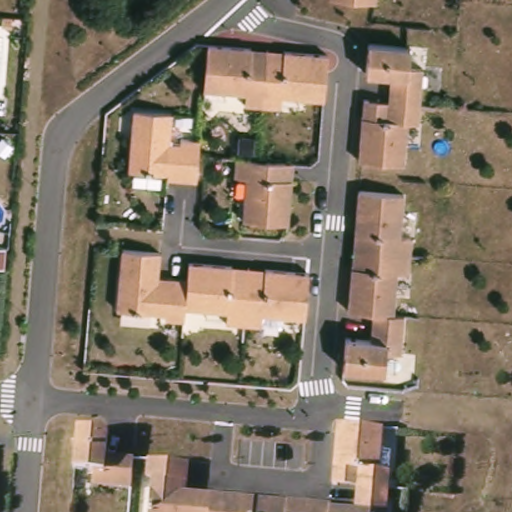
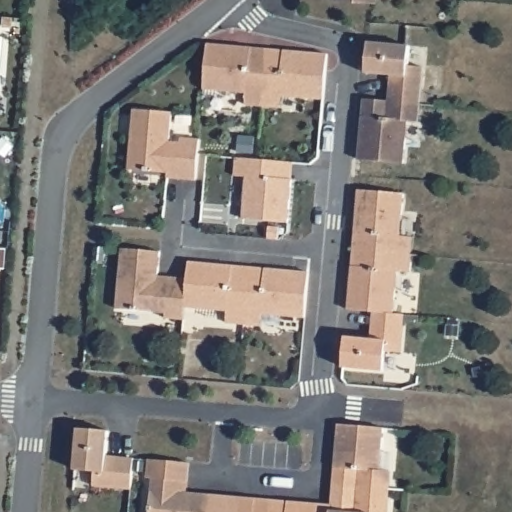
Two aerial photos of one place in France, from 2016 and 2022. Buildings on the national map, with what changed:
unchanged [(381,7),(336,4),(336,0),(381,0),(381,7)]
unchanged [(368,105),(393,107),(396,81),(371,79),(373,49),(415,52),(412,71),(428,73),(426,110),(426,111),(424,128),(412,127),(409,170),(363,165),(367,122),(368,108),(368,105)]
unchanged [(328,105),(286,101),(285,113),(267,112),(251,110),(251,99),(209,95),(213,50),(235,51),(257,54),(273,55),(289,56),(332,60),(332,76),(329,105),(328,105)]
unchanged [(172,179),(134,175),(139,115),(177,119),(176,143),(204,145),(205,145),(202,185),(201,185),(184,184),(172,182),(172,179)]
unchanged [(299,169),(297,185),(293,229),(292,229),(249,225),(252,184),(240,182),(241,164),(242,163),(263,165),(299,168),(299,169)]
unchanged [(410,320),(406,360),(392,358),(390,378),(348,374),(351,344),(376,346),(378,317),(378,316),(353,315),(357,270),(358,255),(360,239),(364,195),(409,200),(406,242),(417,243),(416,260),(414,277),(402,276),(398,318),(410,320)]
unchanged [(311,322),(310,322),(267,318),(267,330),(249,329),(232,327),(234,315),(191,312),(190,323),(189,323),(175,322),(175,319),(122,315),(127,254),(166,257),(165,265),(163,280),(178,282),(192,283),(193,283),(195,267),(239,271),(255,272),(271,273),(314,277),(311,322)]
unchanged [(337,490),(338,488),(339,473),(343,430),(388,435),(385,476),(397,478),(395,493),(395,495),(393,512),(361,512),(362,493),(337,490)]
unchanged [(138,463),(139,463),(136,495),(136,494),(99,491),(100,476),(80,475),(83,433),(114,436),(112,461),(138,463)]
unchanged [(293,512),(155,512),(157,483),(152,483),(154,465),(194,468),(191,498),(216,500),(260,504),(276,505),(293,507),(293,512)]

